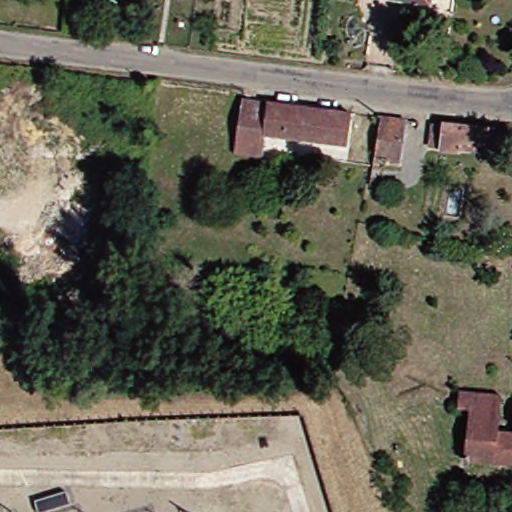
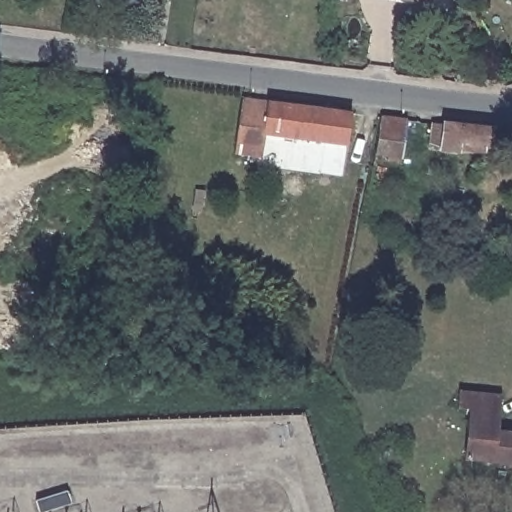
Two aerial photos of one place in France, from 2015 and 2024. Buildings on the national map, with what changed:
unchanged [(241,152),(242,142),(247,96),(355,113),(350,145),(272,133),(269,145),(267,155),(241,152)]
unchanged [(457,144),(456,149),(445,147),(445,143),(430,141),(433,116),(495,126),(490,148),(457,144)]
unchanged [(373,162),(381,118),(403,121),(396,166),(373,162)]
unchanged [(467,456),(472,412),(473,406),(461,403),(463,387),(508,395),(505,417),(503,431),(512,433),(512,464),(467,456)]

